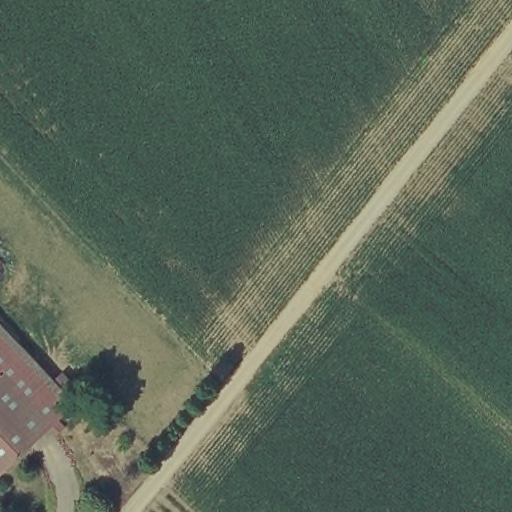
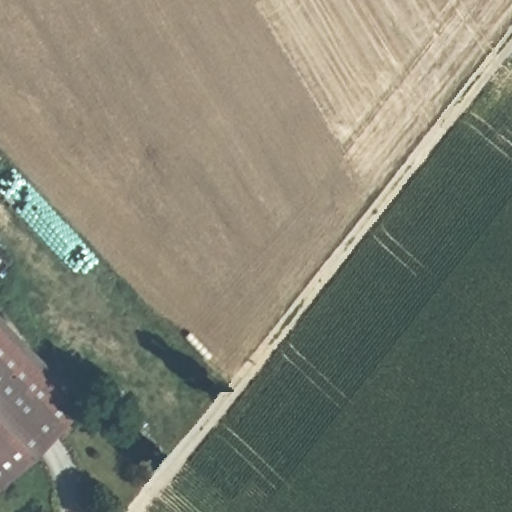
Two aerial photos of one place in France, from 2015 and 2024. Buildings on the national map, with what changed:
unchanged [(0,482),(0,326),(77,407),(0,482)]

